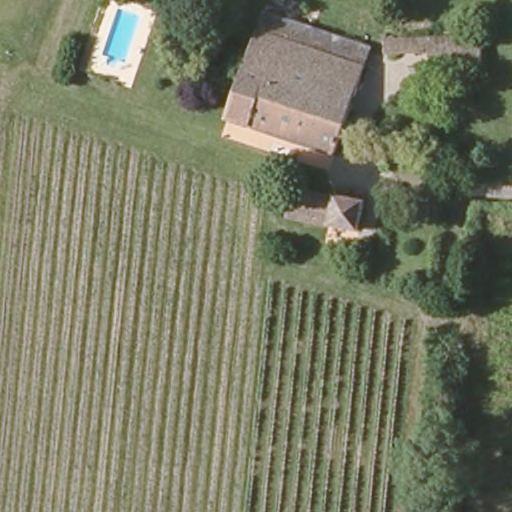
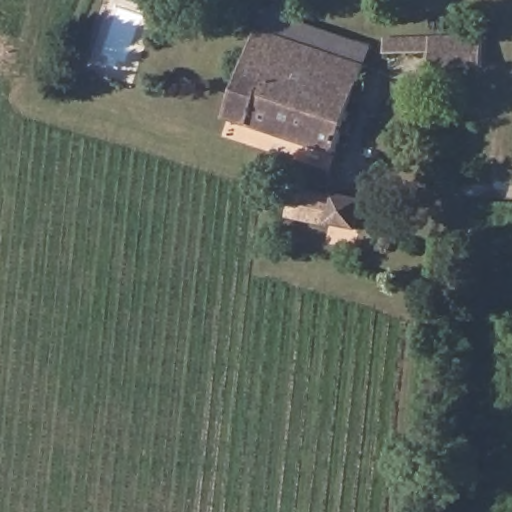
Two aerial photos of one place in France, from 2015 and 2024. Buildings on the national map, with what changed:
unchanged [(377,47),(368,72),(260,36),(267,15),(277,17),(330,34),(377,47)]
unchanged [(339,155),(231,120),(260,36),(368,72),(339,155)]
unchanged [(478,71),(429,72),(429,59),(386,59),(387,42),(478,42),(478,71)]
unchanged [(364,228),(292,215),(293,201),(336,210),(338,194),(370,200),(364,228)]

